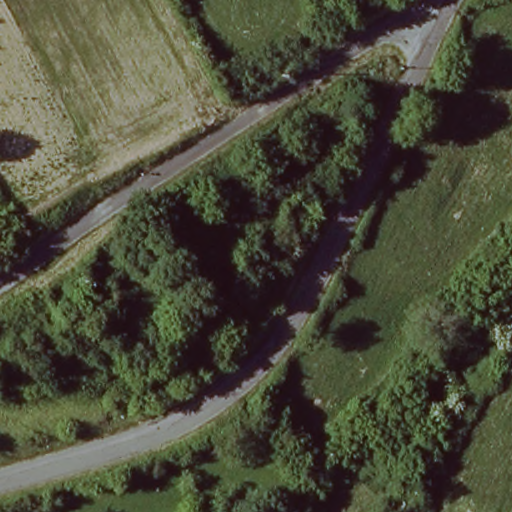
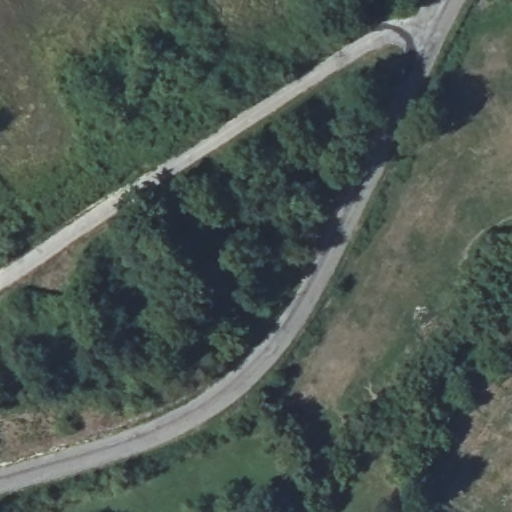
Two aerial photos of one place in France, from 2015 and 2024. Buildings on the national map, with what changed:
[]

